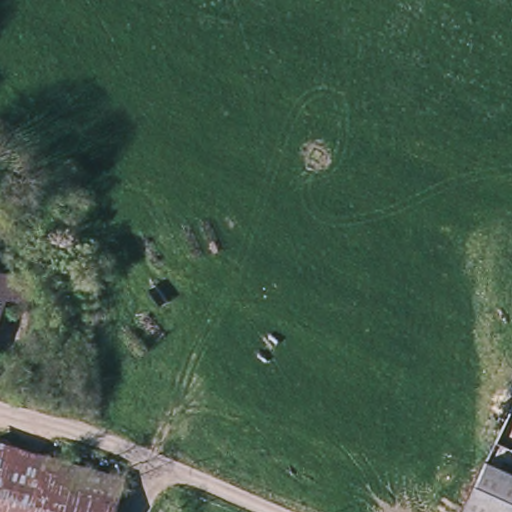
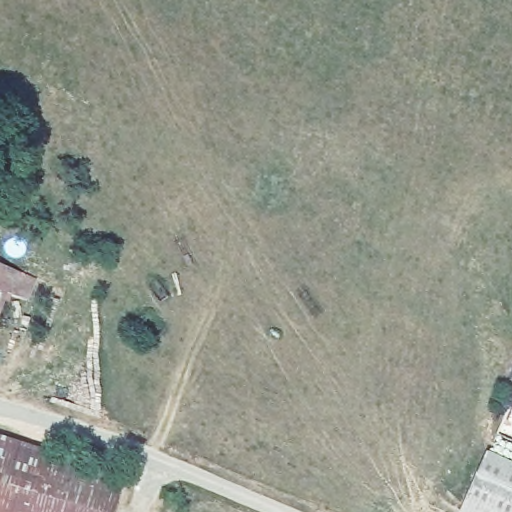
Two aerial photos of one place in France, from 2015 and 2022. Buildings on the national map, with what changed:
unchanged [(1,297),(0,301),(0,270),(8,273),(31,282),(23,305),(1,297)]
unchanged [(113,512),(0,512),(0,435),(124,472),(113,512)]
unchanged [(512,463),(512,512),(456,512),(453,511),(488,450),(512,463)]

